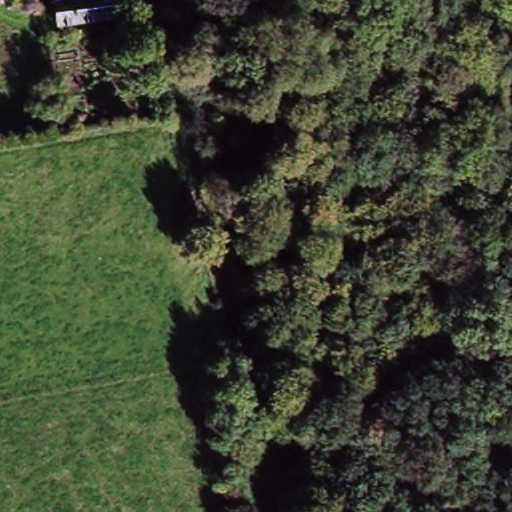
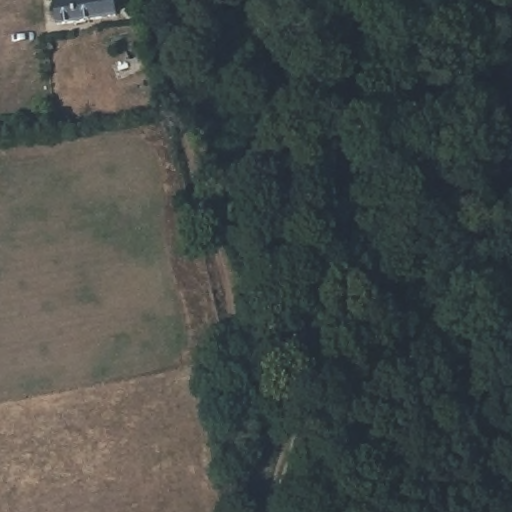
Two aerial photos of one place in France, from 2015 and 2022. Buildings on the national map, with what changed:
unchanged [(109,0),(112,16),(54,27),(50,3),(66,0),(109,0)]

